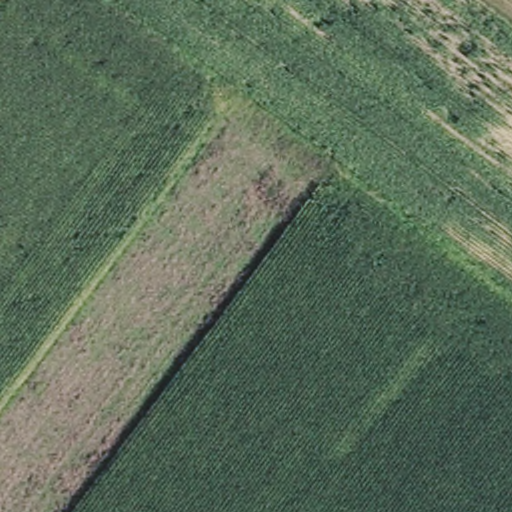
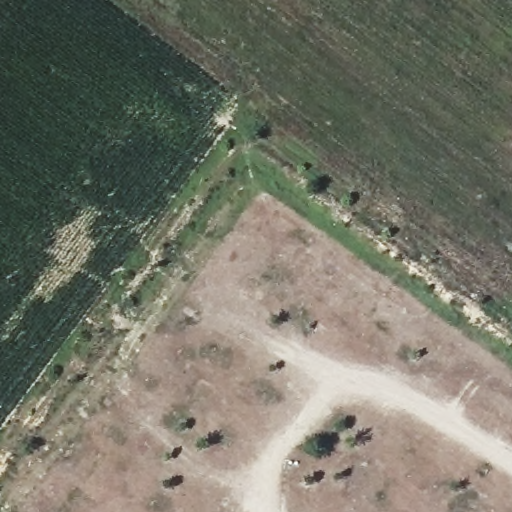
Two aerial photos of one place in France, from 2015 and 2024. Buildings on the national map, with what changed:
[]

